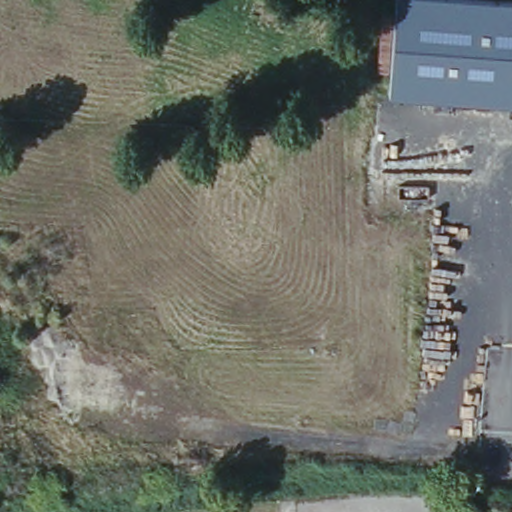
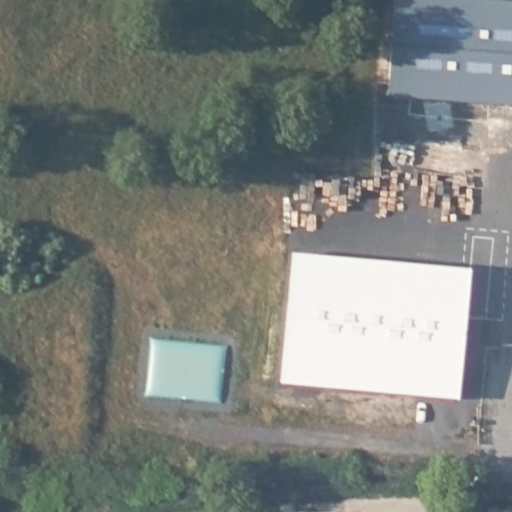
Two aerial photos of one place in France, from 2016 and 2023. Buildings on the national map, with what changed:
unchanged [(387,96),(393,0),(512,0),(512,106),(387,96)]
new [(468,267),(459,400),(283,383),(293,253),(468,267)]

